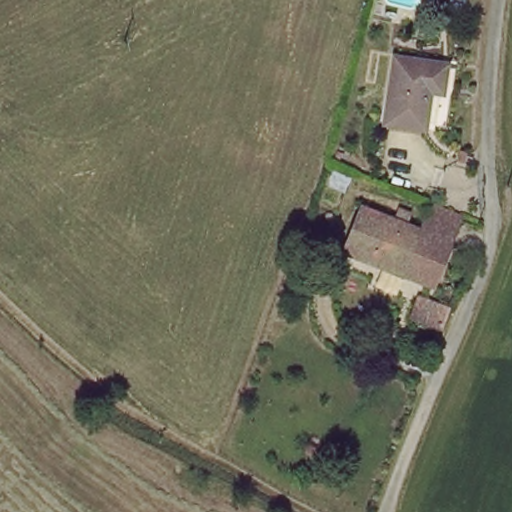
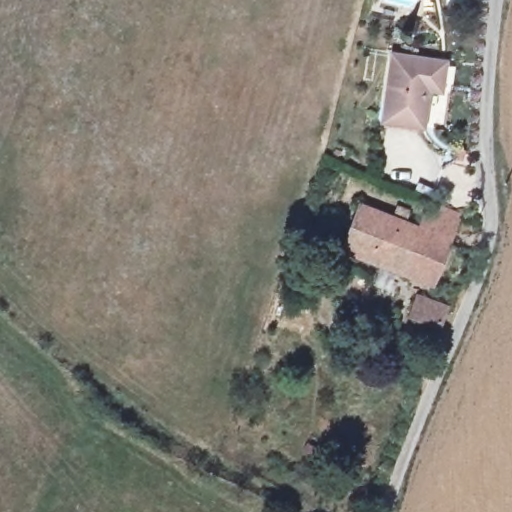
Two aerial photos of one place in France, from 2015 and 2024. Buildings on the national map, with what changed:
unchanged [(431,89),(428,123),(386,121),(390,77),(393,56),(444,60),(441,89),(441,90),(431,89)]
unchanged [(423,203),(476,225),(465,250),(412,229),(423,203)]
unchanged [(465,250),(448,291),(338,249),(355,207),(412,229),(465,250)]
unchanged [(428,343),(396,328),(414,297),(447,308),(428,343)]

